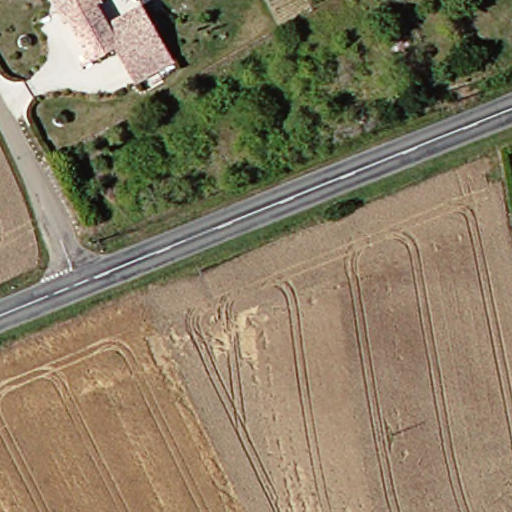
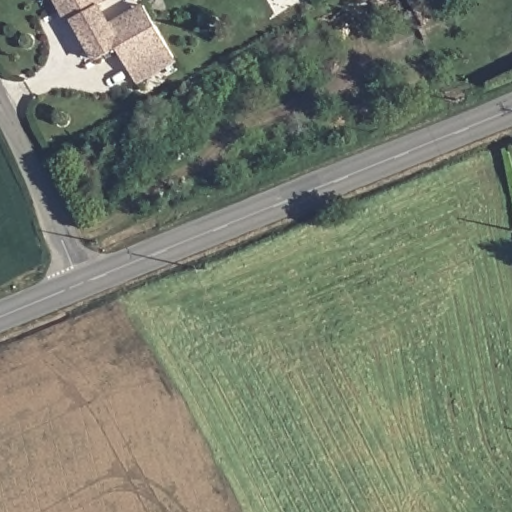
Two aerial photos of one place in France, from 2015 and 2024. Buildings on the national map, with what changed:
unchanged [(145,35),(163,25),(182,59),(146,80),(126,47),(103,60),(80,20),(75,22),(69,11),(62,0),(107,0),(109,3),(105,5),(116,26),(134,15),(145,35)]

